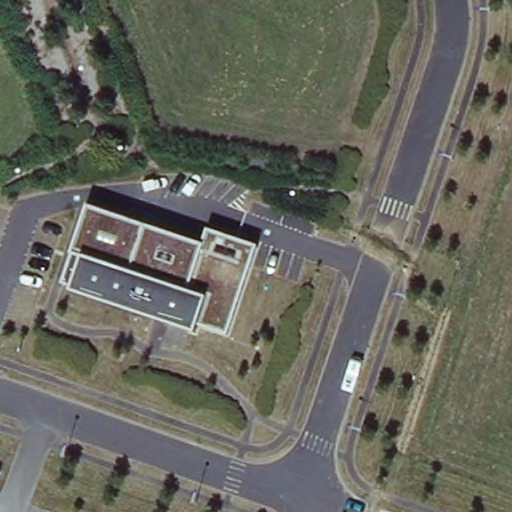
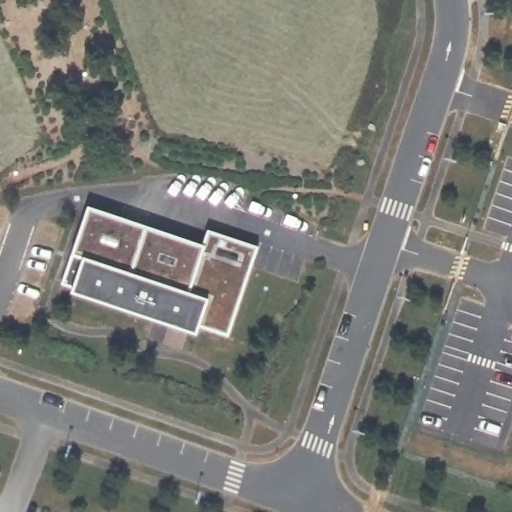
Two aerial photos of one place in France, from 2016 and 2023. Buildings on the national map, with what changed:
unchanged [(87,206),(204,245),(207,231),(257,250),(227,336),(197,326),(194,333),(72,294),(60,282),(72,252),(87,206)]

